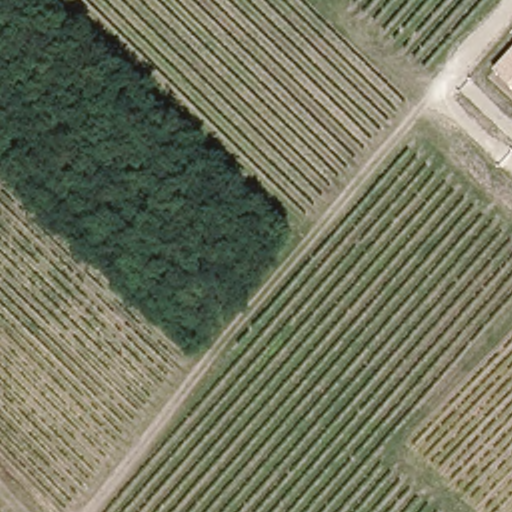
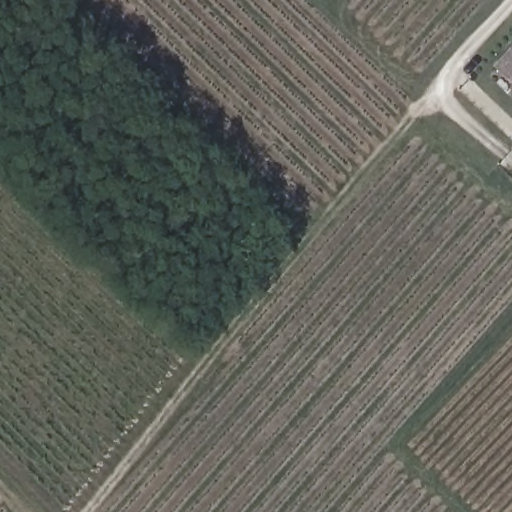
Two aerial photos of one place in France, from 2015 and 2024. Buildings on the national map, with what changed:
unchanged [(512,46),(512,83),(493,66),(512,46)]

